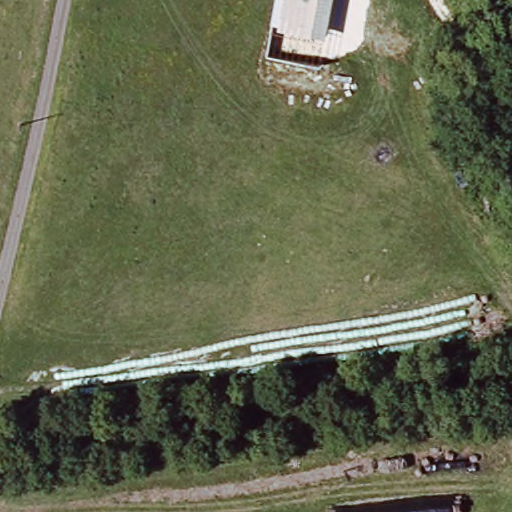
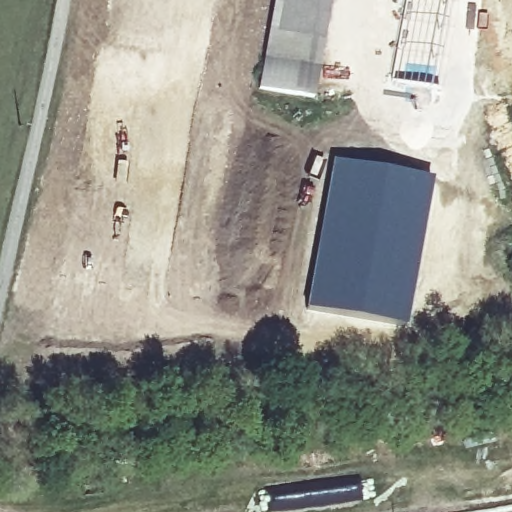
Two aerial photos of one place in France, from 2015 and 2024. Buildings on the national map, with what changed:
unchanged [(262,84),(276,0),(328,0),(313,93),(262,84)]
new [(331,159),(432,178),(405,327),(305,308),(331,159)]

